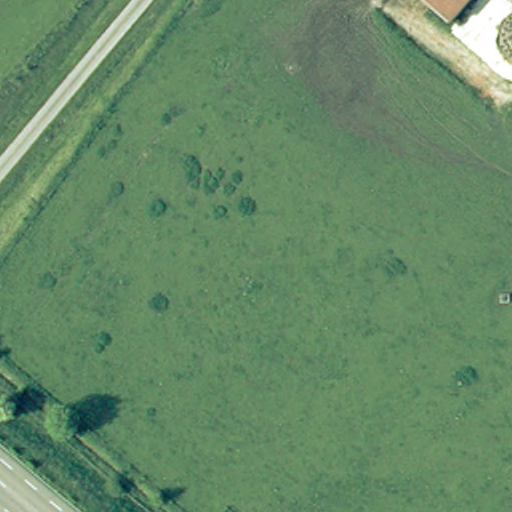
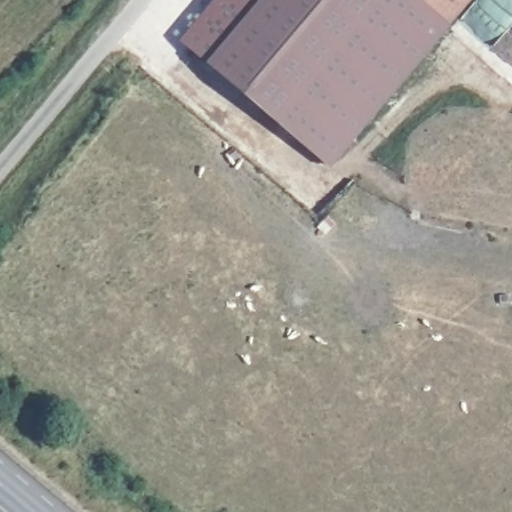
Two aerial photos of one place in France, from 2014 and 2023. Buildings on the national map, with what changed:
new [(204,59),(254,0),(417,0),(442,21),(450,27),(332,165),(204,59)]
unchanged [(417,0),(460,0),(442,21),(417,0)]

